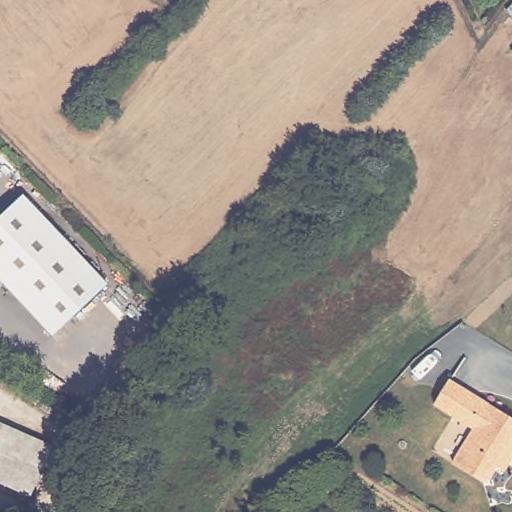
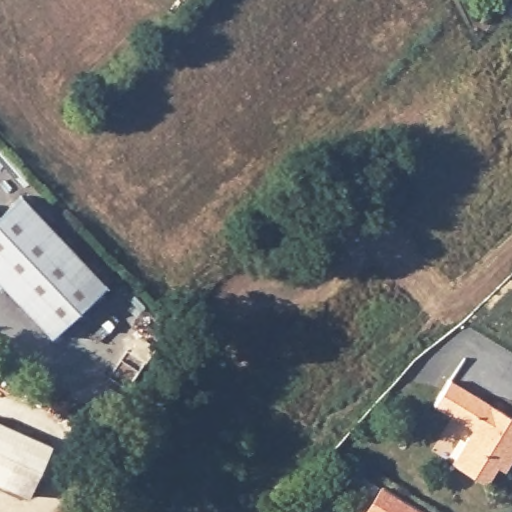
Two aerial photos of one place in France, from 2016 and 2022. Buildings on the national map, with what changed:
unchanged [(505,9),(512,2),(512,16),(505,9)]
unchanged [(512,45),(512,50),(510,47),(512,45)]
unchanged [(0,274),(0,213),(28,187),(113,279),(55,333),(0,274)]
unchanged [(501,460),(492,474),(486,475),(456,456),(476,423),(439,399),(455,373),(512,409),(512,461),(509,465),(501,460)]
unchanged [(34,500),(0,487),(0,428),(55,449),(34,500)]
new [(383,484),(428,512),(366,512),(383,484)]

